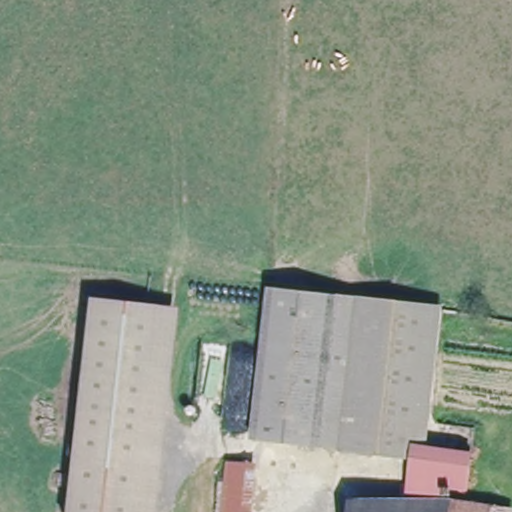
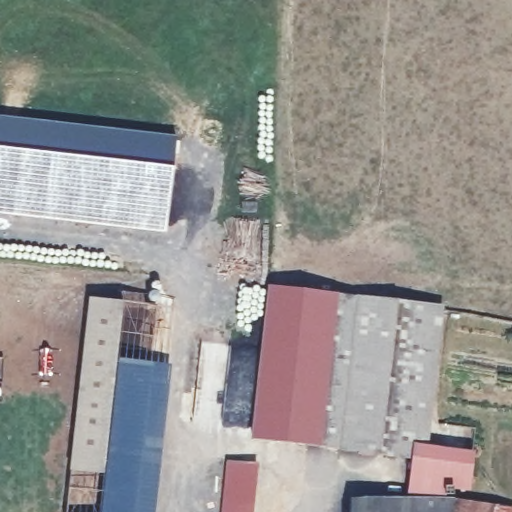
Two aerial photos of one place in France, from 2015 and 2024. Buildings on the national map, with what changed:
new [(176,135),(173,166),(0,146),(0,115),(176,135)]
new [(173,166),(165,234),(37,218),(0,217),(0,146),(173,166)]
unchanged [(246,430),(269,275),(335,284),(313,439),(246,430)]
unchanged [(424,298),(444,302),(425,445),(406,442),(405,450),(374,447),(313,439),(335,284),(390,291),(424,298)]
unchanged [(96,303),(164,312),(133,512),(66,512),(96,303)]
unchanged [(164,312),(182,314),(152,512),(133,512),(164,312)]
unchanged [(405,450),(406,442),(425,445),(469,450),(466,487),(444,486),(443,497),(399,495),(405,450)]
unchanged [(231,462),(253,464),(247,512),(223,512),(231,462)]
unchanged [(348,493),(368,494),(399,495),(443,497),(443,499),(442,512),(347,512),(348,493)]
unchanged [(443,499),(487,505),(486,512),(442,512),(443,499)]

